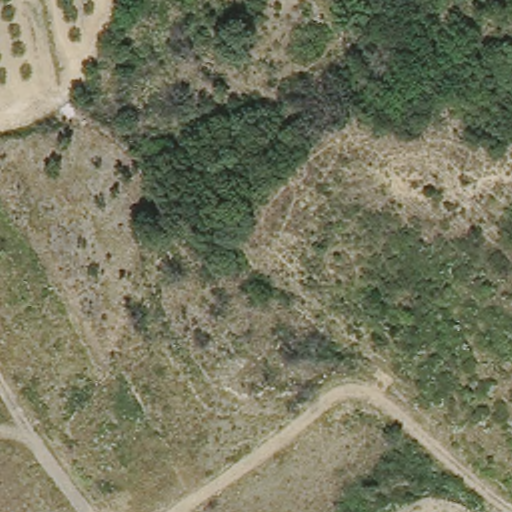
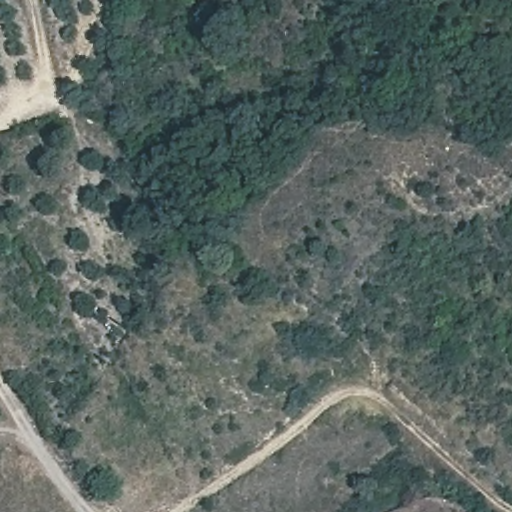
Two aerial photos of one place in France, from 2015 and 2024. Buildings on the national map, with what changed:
[]

